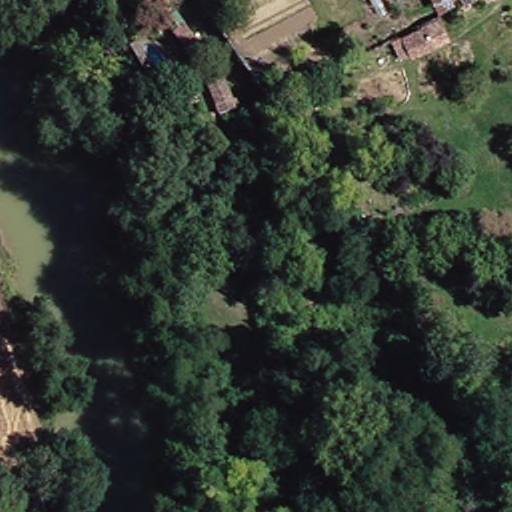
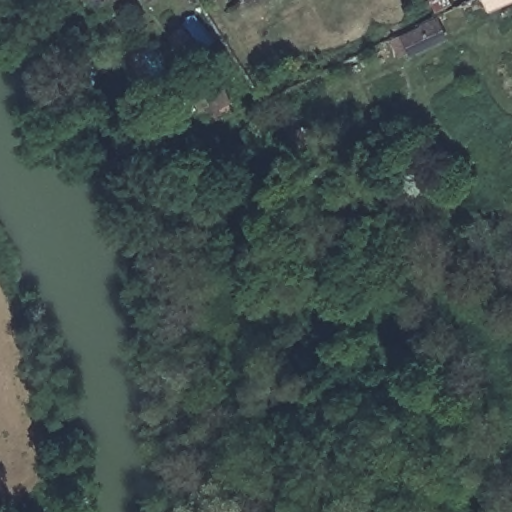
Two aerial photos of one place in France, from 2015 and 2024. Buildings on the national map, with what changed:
unchanged [(432,41),(409,52),(402,36),(424,25),(432,41)]

